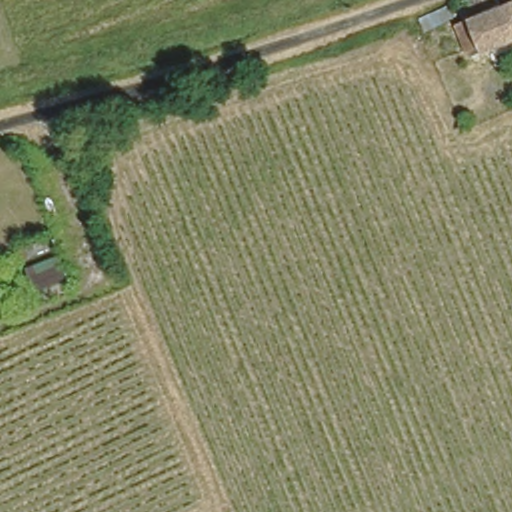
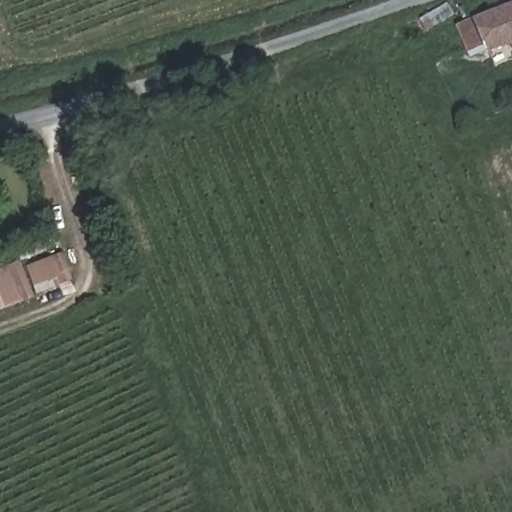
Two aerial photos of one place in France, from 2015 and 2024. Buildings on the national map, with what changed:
unchanged [(487,22),(471,25),(466,11),(481,5),(480,0),(512,0),(512,20),(491,28),(487,22)]
new [(0,309),(0,268),(21,258),(24,265),(61,250),(73,279),(0,309)]

